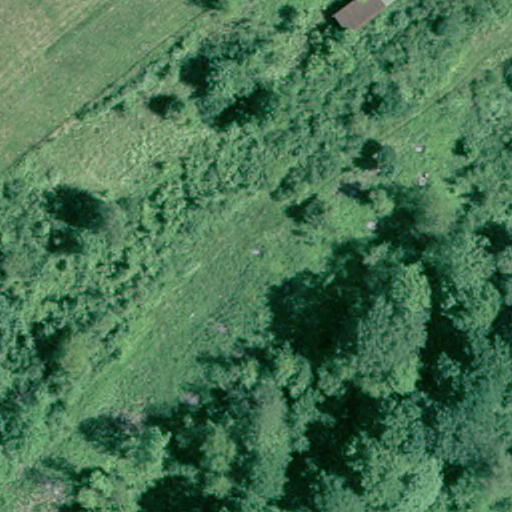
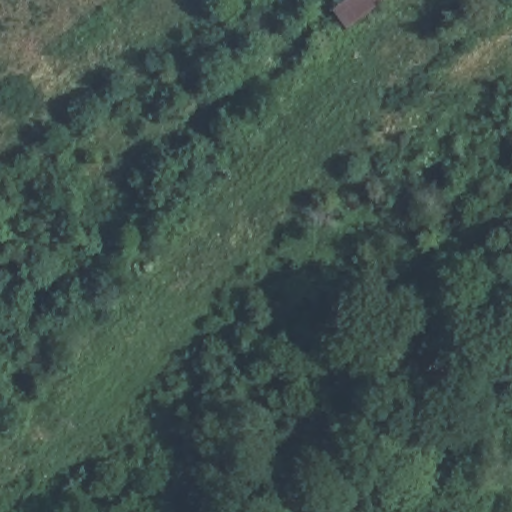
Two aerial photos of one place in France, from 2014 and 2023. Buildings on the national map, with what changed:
unchanged [(353,30),(334,0),(394,0),(353,30)]

